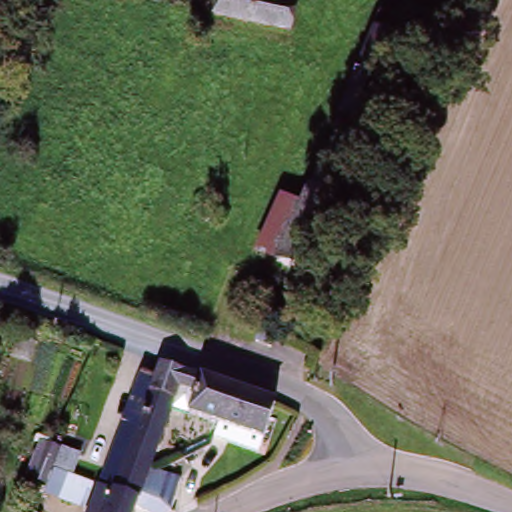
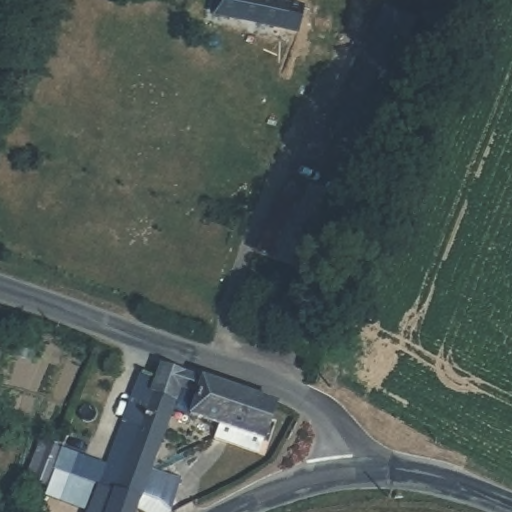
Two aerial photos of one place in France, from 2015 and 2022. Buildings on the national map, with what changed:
unchanged [(278,0),(276,8),(292,14),(282,42),(211,20),(217,0),(278,0)]
unchanged [(348,125),(377,31),(406,41),(377,134),(348,125)]
unchanged [(357,208),(325,197),(337,160),(370,171),(357,208)]
unchanged [(325,197),(357,208),(334,285),(301,276),(312,237),(325,197)]
unchanged [(312,237),(301,276),(268,267),(280,227),(312,237)]
unchanged [(281,343),(276,353),(261,347),(265,337),(281,343)]
unchanged [(97,486),(111,455),(144,375),(151,377),(156,364),(228,389),(267,402),(247,451),(212,439),(205,436),(211,421),(177,406),(150,470),(149,472),(181,487),(172,512),(84,512),(97,486)]
unchanged [(97,486),(84,512),(43,499),(49,484),(26,476),(37,442),(78,457),(72,477),(97,486)]

